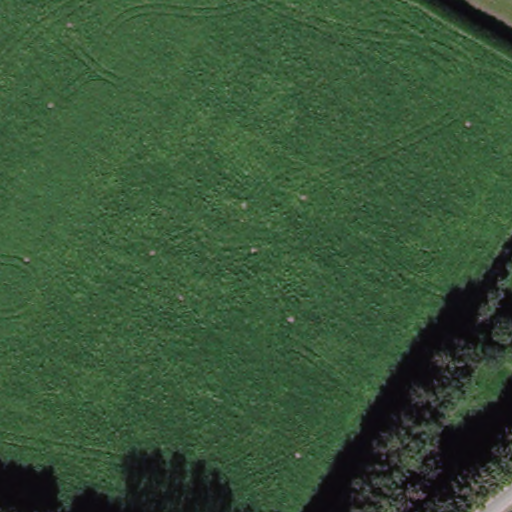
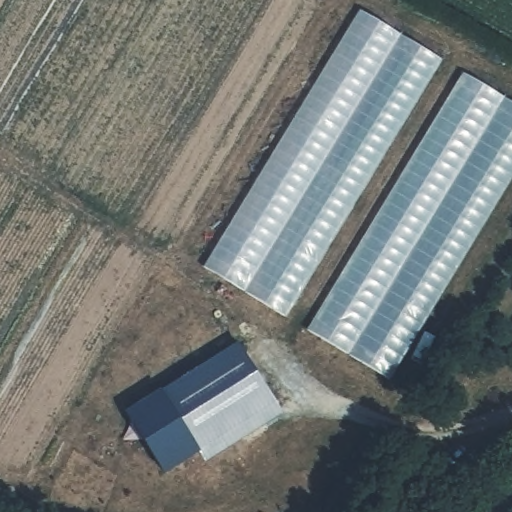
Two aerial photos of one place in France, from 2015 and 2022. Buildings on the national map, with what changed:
new [(205,267),(361,10),(444,61),(287,318),(205,267)]
new [(467,75),(512,101),(512,179),(389,380),(309,331),(467,75)]
new [(239,342),(277,401),(200,450),(163,391),(239,342)]
new [(163,391),(200,450),(165,472),(128,412),(163,391)]
unchanged [(402,502),(384,491),(404,459),(422,470),(402,502)]

